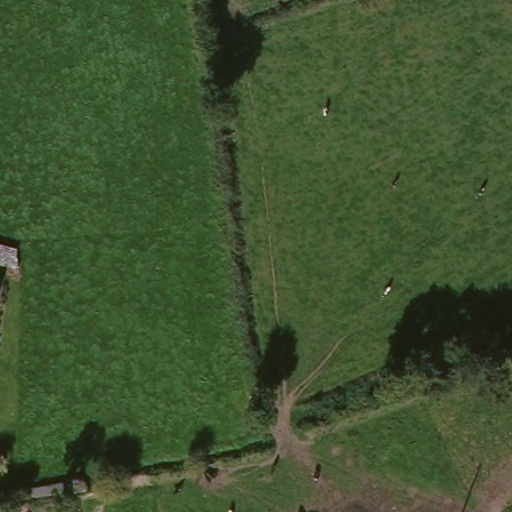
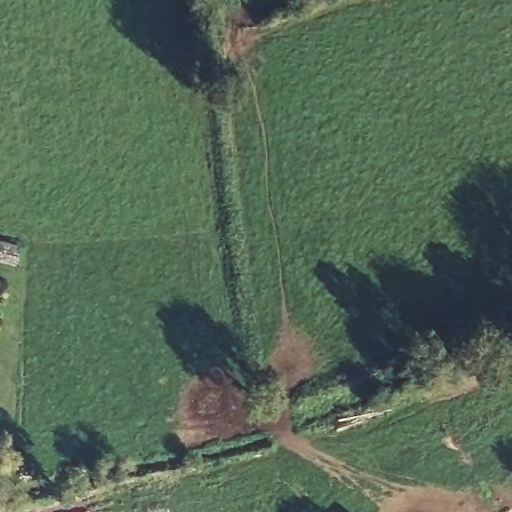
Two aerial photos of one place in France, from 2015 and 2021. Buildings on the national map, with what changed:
unchanged [(0,292),(0,281),(3,282),(0,292)]

